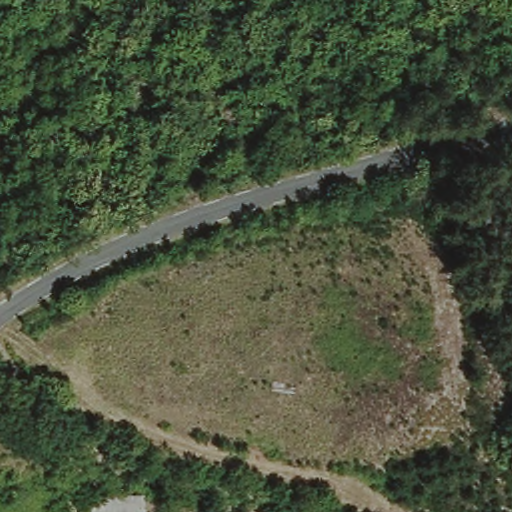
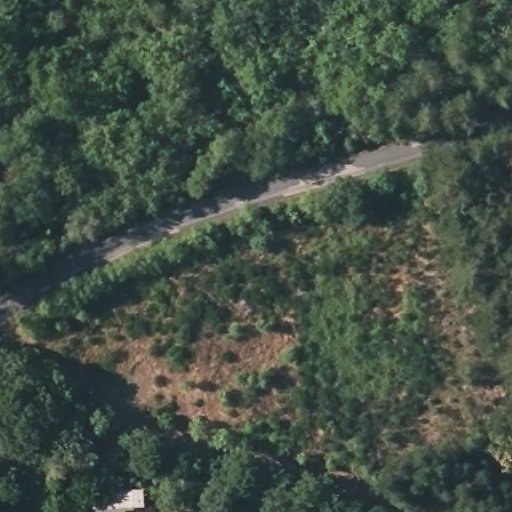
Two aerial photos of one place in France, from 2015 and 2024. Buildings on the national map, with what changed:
unchanged [(140,494),(142,512),(89,512),(87,499),(90,498),(140,494)]

